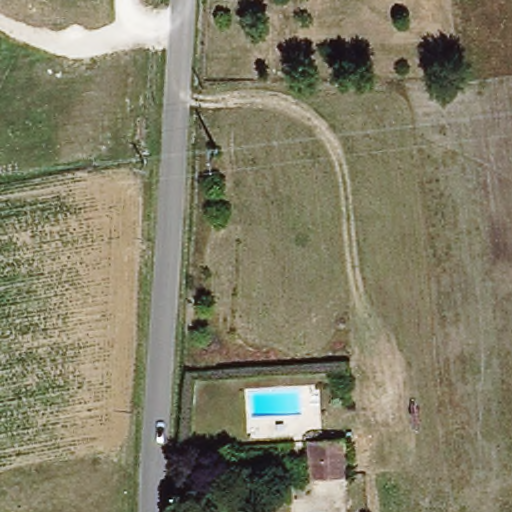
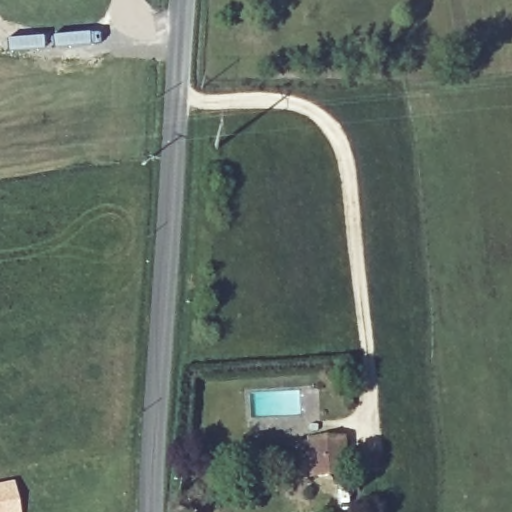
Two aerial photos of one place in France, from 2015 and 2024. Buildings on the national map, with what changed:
unchanged [(345,473),(315,477),(312,445),(342,442),(345,473)]
new [(13,480),(21,512),(0,512),(0,482),(13,480)]

